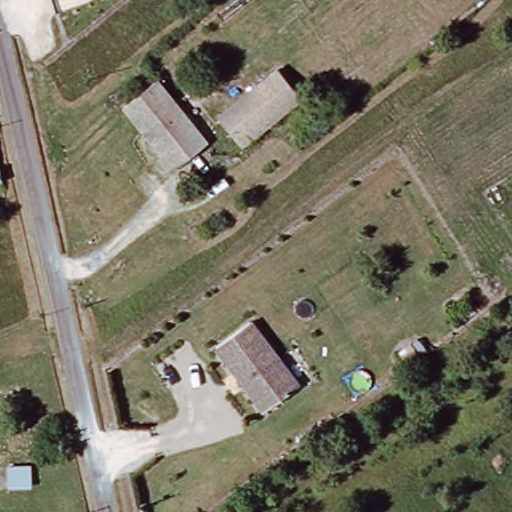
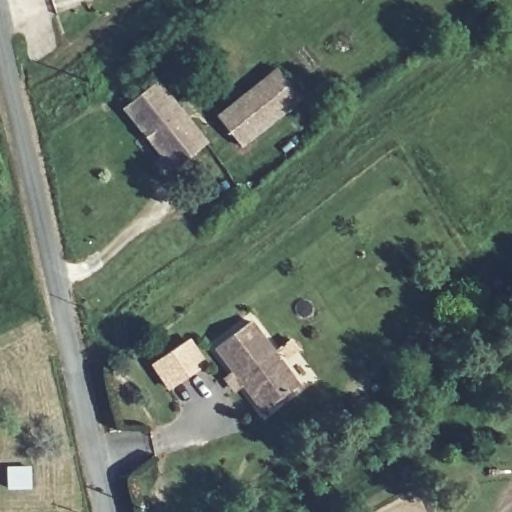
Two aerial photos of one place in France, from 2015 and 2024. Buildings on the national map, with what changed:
unchanged [(279,69),(302,98),(240,147),(216,118),(279,69)]
unchanged [(154,80),(173,103),(139,129),(121,106),(154,80)]
unchanged [(173,103),(205,143),(167,172),(155,156),(158,154),(139,129),(173,103)]
unchanged [(248,319),(298,385),(263,411),(213,345),(248,319)]
new [(207,365),(167,391),(150,364),(190,339),(207,365)]

